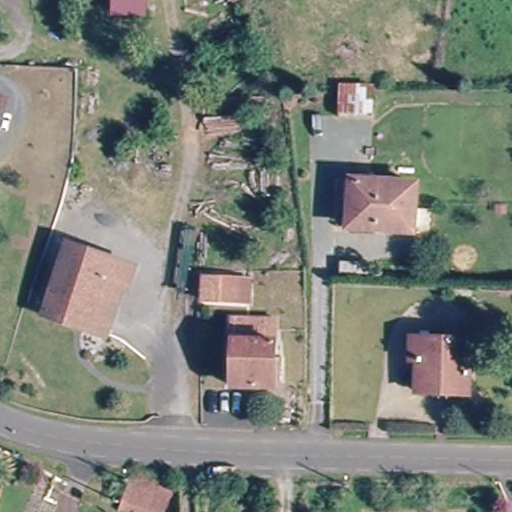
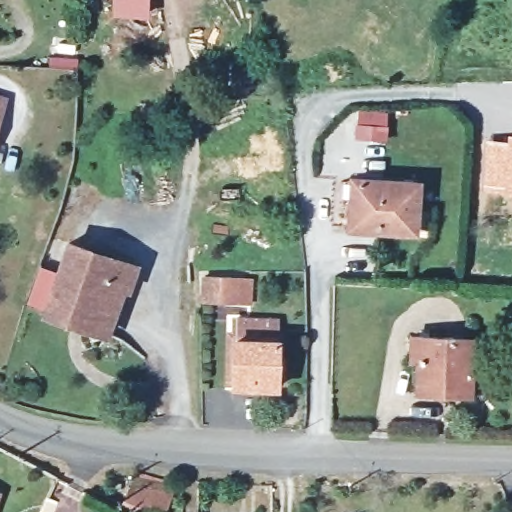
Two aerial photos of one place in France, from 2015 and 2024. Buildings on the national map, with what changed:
unchanged [(116,18),(116,0),(146,0),(146,19),(116,18)]
unchanged [(353,107),(388,107),(388,135),(355,136),(353,107)]
new [(505,139),(505,132),(512,132),(512,190),(480,188),(482,139),(505,139)]
unchanged [(352,184),(415,184),(416,230),(352,230),(352,184)]
unchanged [(95,325),(50,307),(78,241),(135,265),(127,283),(107,330),(95,325)]
unchanged [(232,298),(231,279),(256,277),(257,297),(232,298)]
unchanged [(205,281),(229,279),(230,298),(205,300),(198,301),(197,281),(205,281)]
unchanged [(276,319),(276,385),(235,384),(236,318),(276,319)]
unchanged [(420,363),(412,363),(412,338),(468,340),(467,393),(418,392),(420,363)]
unchanged [(135,471),(170,481),(159,512),(155,512),(124,502),(135,471)]

